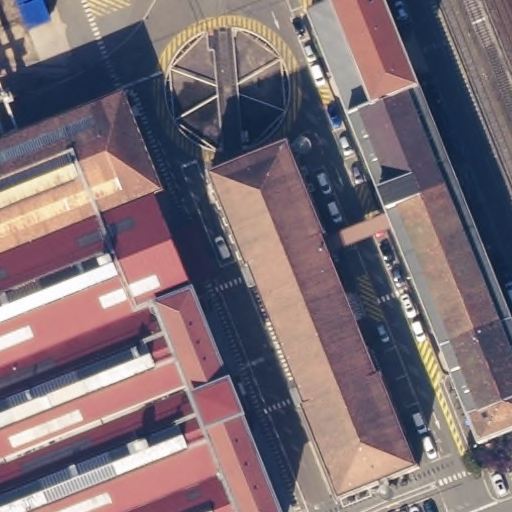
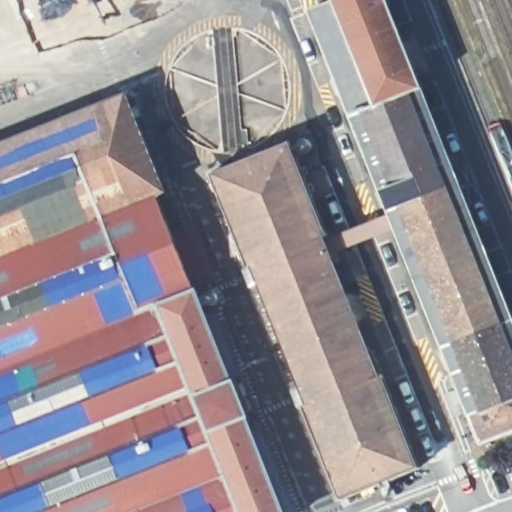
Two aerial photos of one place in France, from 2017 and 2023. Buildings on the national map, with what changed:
unchanged [(512,308),(512,439),(486,449),(315,17),(339,8),(335,0),(390,0),(512,308)]
unchanged [(244,405),(246,411),(245,411),(248,420),(285,512),(0,512),(0,139),(124,90),(127,92),(166,187),(157,191),(197,289),(206,285),(240,371),(230,375),(232,379),(232,378),(244,405)]
unchanged [(341,495),(304,402),(309,400),(253,261),(248,263),(211,169),(290,137),(327,231),(324,233),(379,372),(383,371),(420,463),(341,495)]
unchanged [(295,510),(291,512),(285,512),(248,420),(258,416),(295,510)]

